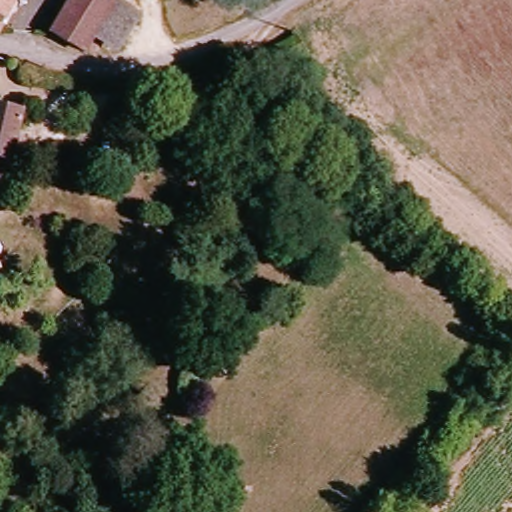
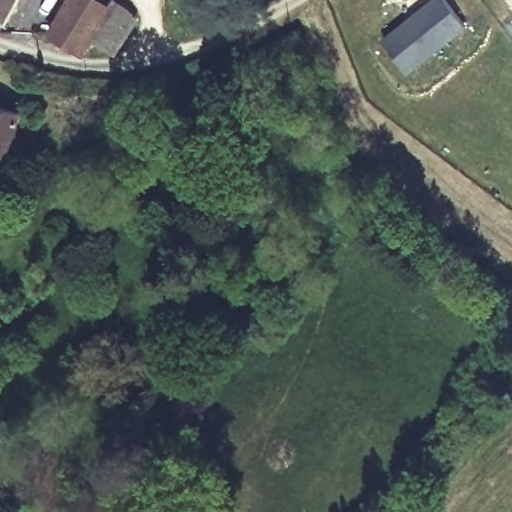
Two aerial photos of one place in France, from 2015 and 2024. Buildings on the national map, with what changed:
unchanged [(1,32),(0,31),(0,0),(20,0),(1,32)]
unchanged [(100,35),(89,50),(54,29),(73,0),(128,0),(100,35)]
unchanged [(128,0),(145,0),(155,7),(123,51),(100,35),(128,0)]
new [(468,24),(410,69),(386,37),(433,0),(448,0),(468,24)]
unchanged [(0,176),(0,100),(30,102),(26,127),(22,153),(19,177),(0,176)]

